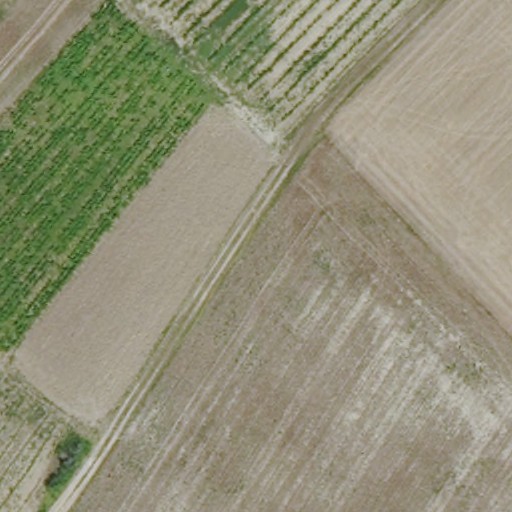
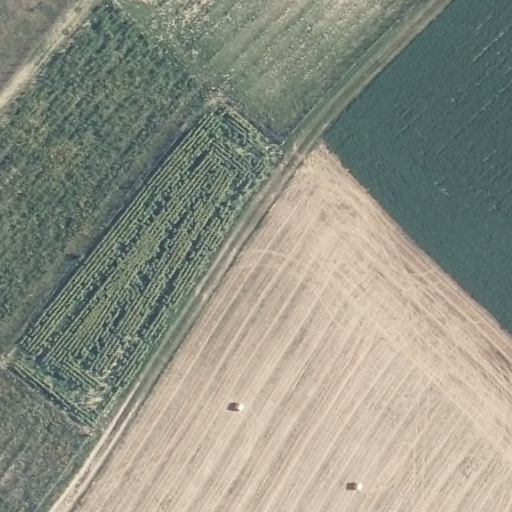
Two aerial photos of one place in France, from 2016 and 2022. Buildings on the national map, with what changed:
[]

